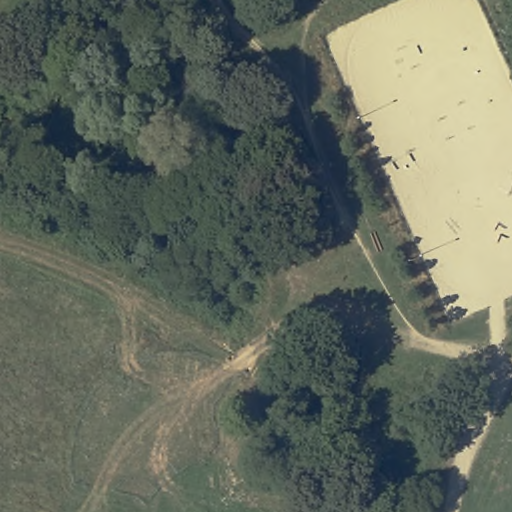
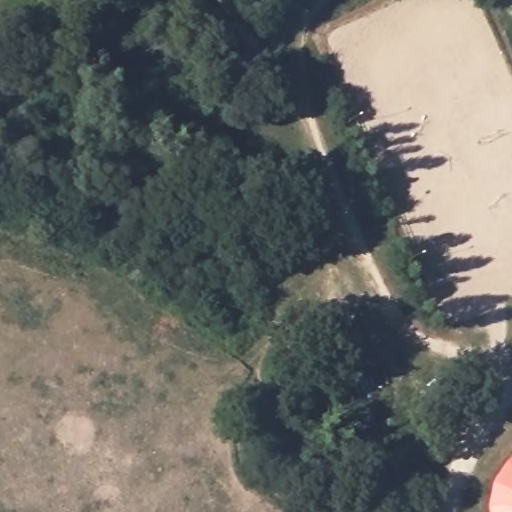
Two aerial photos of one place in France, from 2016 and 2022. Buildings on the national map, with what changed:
new [(490,507),(494,482),(508,460),(512,458),(512,512),(491,512),(490,507)]

